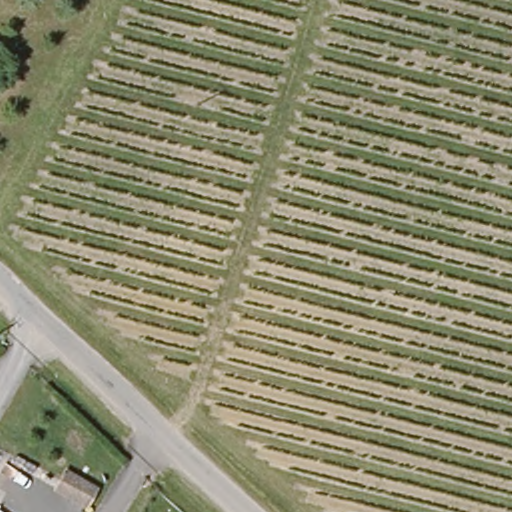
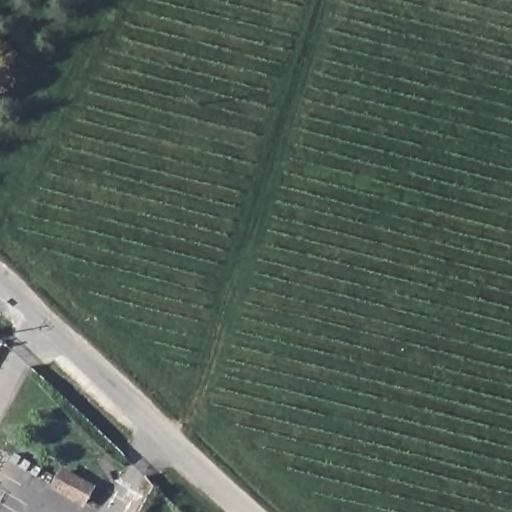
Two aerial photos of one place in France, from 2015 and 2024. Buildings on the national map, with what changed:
unchanged [(82,487),(75,501),(47,488),(54,473),(82,487)]

